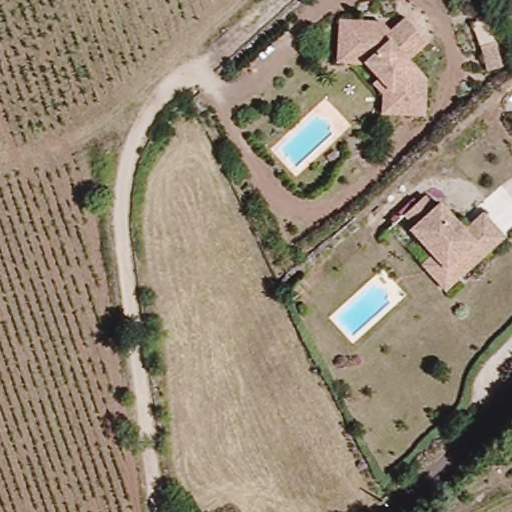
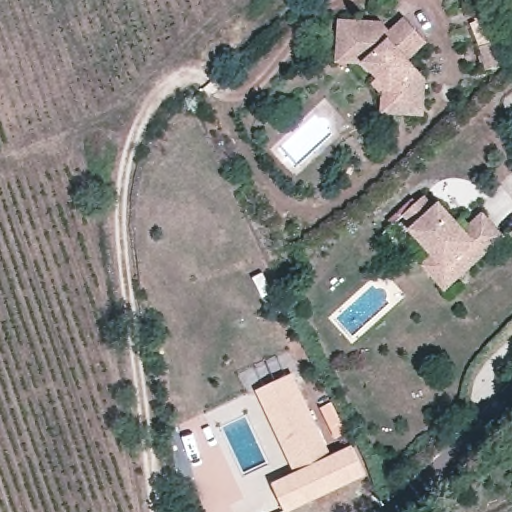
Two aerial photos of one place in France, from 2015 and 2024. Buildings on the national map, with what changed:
unchanged [(377,96),(369,86),(379,79),(365,66),(353,65),(335,65),(336,23),(353,23),(374,23),(387,35),(400,23),(421,47),(407,66),(420,81),(418,119),(389,118),(378,117),(377,96)]
unchanged [(490,57),(498,80),(484,85),(476,62),(490,57)]
unchanged [(420,265),(431,255),(414,236),(413,229),(404,219),(423,201),(434,212),(442,205),(458,224),(463,219),(470,226),(483,215),(503,238),(457,281),(444,292),(420,265)]
new [(331,456),(352,447),(367,477),(288,512),(286,512),(273,484),(295,473),(257,392),(293,374),(331,456)]

